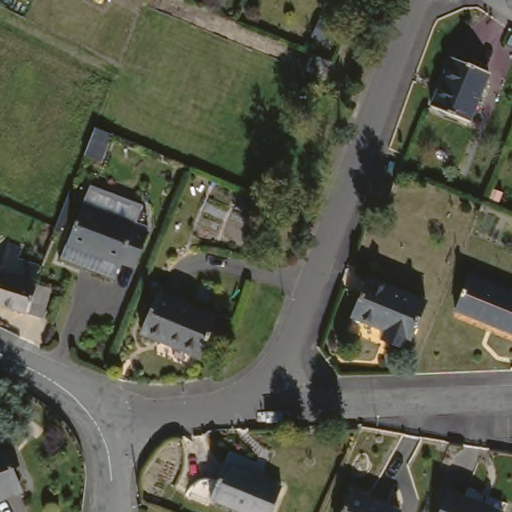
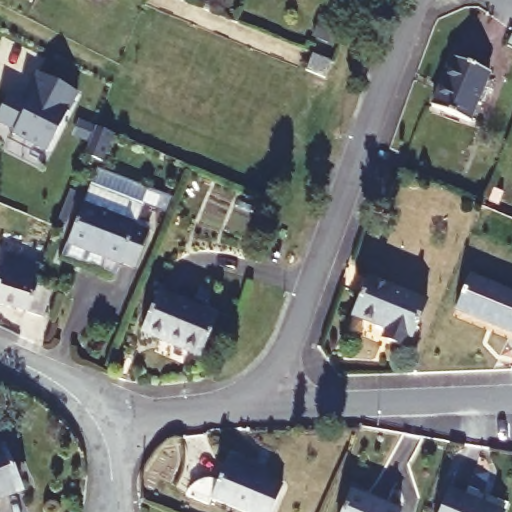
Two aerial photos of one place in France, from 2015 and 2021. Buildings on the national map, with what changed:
unchanged [(34,1),(33,0),(34,0),(34,1)]
unchanged [(106,3),(100,0),(107,0),(106,3)]
unchanged [(320,20),(333,26),(327,42),(313,37),(320,20)]
unchanged [(333,62),(327,79),(306,70),(312,52),(333,62)]
unchanged [(484,74),(465,122),(427,107),(446,59),(484,74)]
new [(9,95),(29,105),(33,96),(29,94),(39,75),(78,94),(48,153),(14,135),(16,131),(0,124),(0,114),(9,95)]
unchanged [(96,127),(114,135),(106,162),(87,154),(96,127)]
unchanged [(66,247),(72,233),(89,194),(137,214),(136,217),(152,225),(139,259),(121,251),(119,254),(113,268),(66,247)]
unchanged [(4,237),(39,247),(29,281),(44,283),(31,316),(0,305),(0,248),(4,237)]
unchanged [(428,300),(408,354),(384,345),(390,330),(353,316),(368,276),(371,277),(428,300)]
unchanged [(512,332),(464,312),(477,280),(512,294),(512,332)]
unchanged [(217,314),(199,353),(144,328),(160,290),(217,314)]
unchanged [(12,482),(0,486),(0,442),(12,482)]
unchanged [(274,512),(254,512),(217,496),(232,460),(285,485),(274,512)]
unchanged [(505,507),(503,512),(439,512),(450,486),(505,507)]
unchanged [(345,512),(354,492),(399,510),(398,512),(345,512)]

